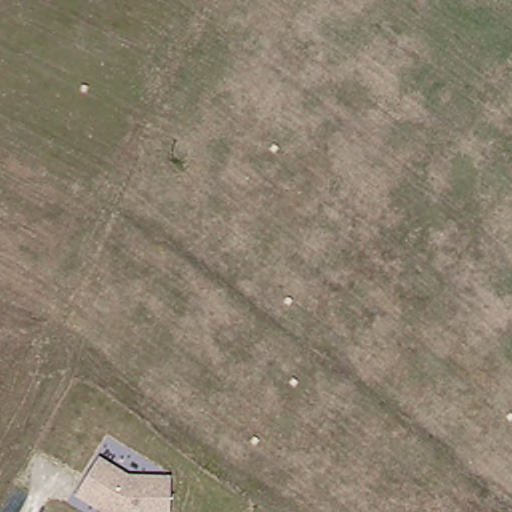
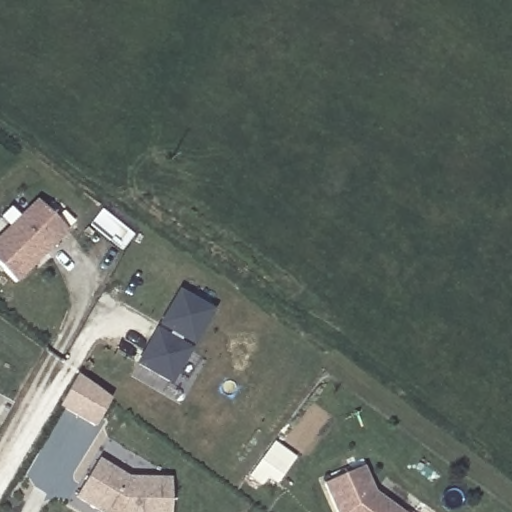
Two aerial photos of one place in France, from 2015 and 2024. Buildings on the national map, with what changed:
new [(71,232),(17,283),(0,267),(0,234),(35,200),(71,232)]
new [(161,329),(172,335),(176,328),(165,322),(185,290),(216,308),(175,380),(143,362),(161,329)]
new [(82,375),(115,398),(101,426),(65,405),(82,375)]
unchanged [(76,502),(94,463),(130,480),(170,482),(168,512),(98,512),(76,502)]
new [(367,467),(376,491),(405,512),(341,512),(329,483),(367,467)]

